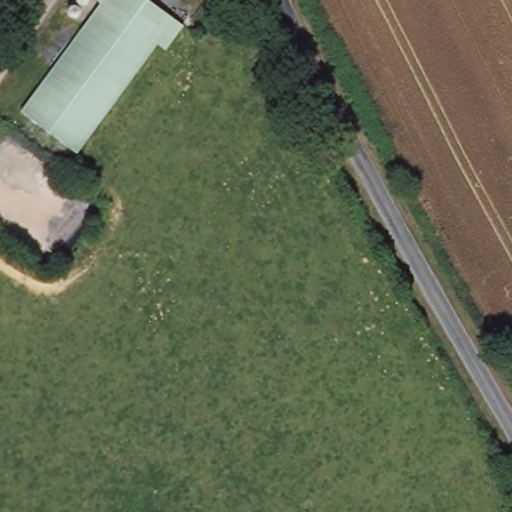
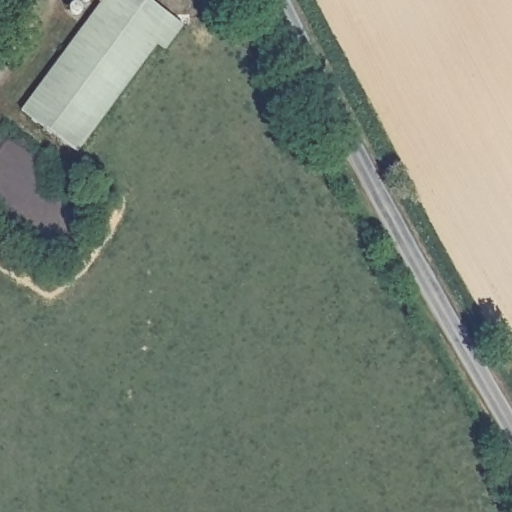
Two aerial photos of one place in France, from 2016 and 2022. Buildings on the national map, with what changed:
unchanged [(21,110),(100,2),(96,0),(148,0),(182,24),(164,50),(156,43),(76,152),(21,110)]
unchanged [(76,19),(62,8),(68,0),(91,0),(76,19)]

